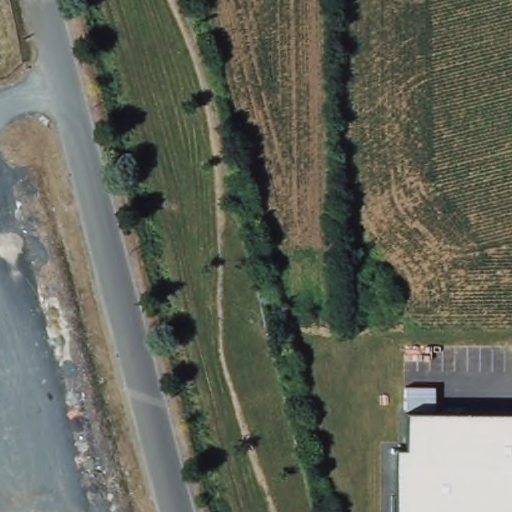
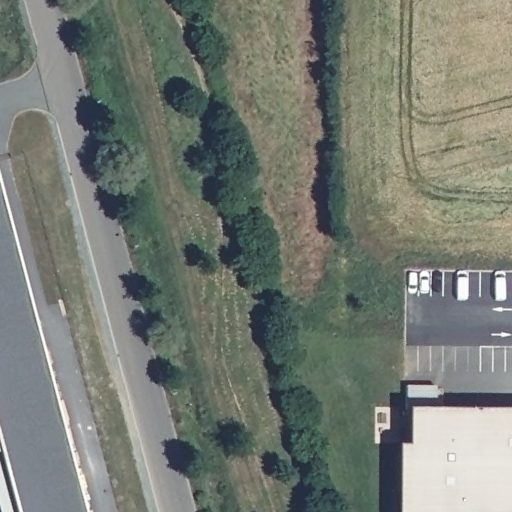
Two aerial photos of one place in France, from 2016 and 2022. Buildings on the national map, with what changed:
new [(80,512),(13,512),(0,461),(0,209),(80,512)]
unchanged [(512,412),(512,512),(396,512),(394,448),(407,448),(409,410),(512,412)]

